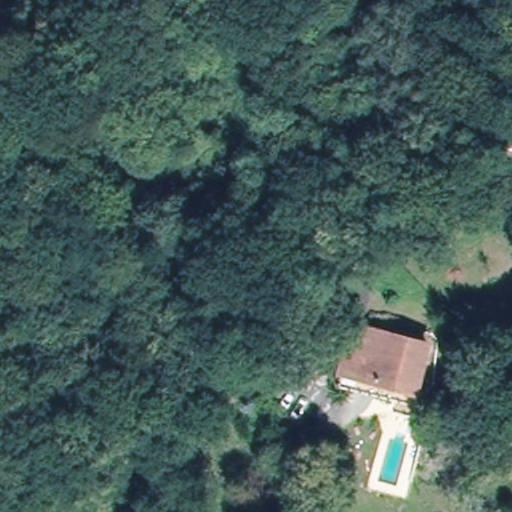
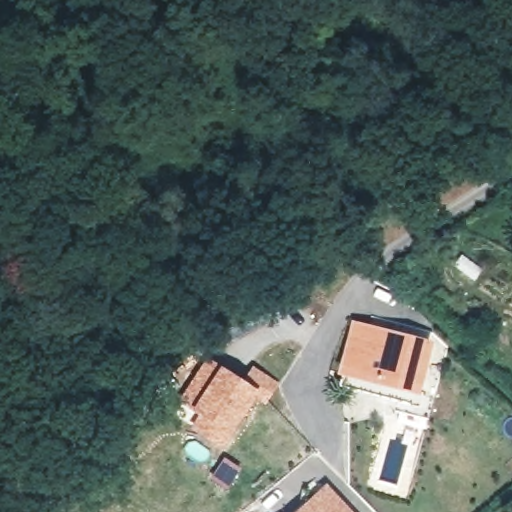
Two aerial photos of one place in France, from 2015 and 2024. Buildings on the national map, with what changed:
unchanged [(412,389),(352,371),(341,367),(354,323),(365,327),(426,346),(412,389)]
new [(207,361),(221,367),(243,380),(253,367),(277,382),(264,405),(256,401),(232,437),(225,450),(191,431),(203,413),(195,408),(180,402),(207,361)]
new [(354,512),(295,512),(327,483),(354,512)]

